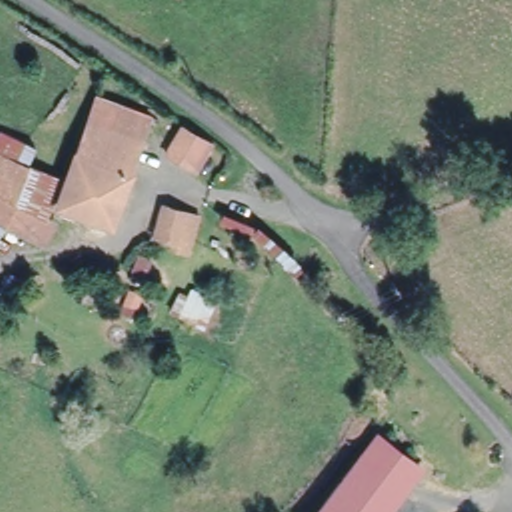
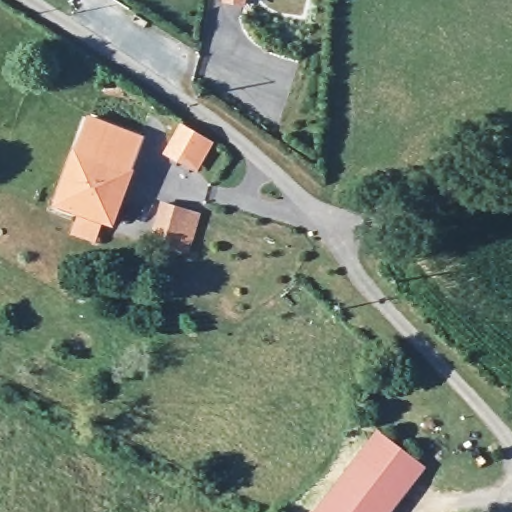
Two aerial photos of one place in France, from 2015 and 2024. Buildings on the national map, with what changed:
new [(244,3),(228,0),(245,0),(244,3)]
unchanged [(114,216),(58,198),(70,164),(89,107),(144,125),(114,216)]
demolished [(34,152),(70,164),(58,198),(50,196),(42,217),(54,222),(45,242),(3,225),(0,231),(0,125),(40,142),(34,152)]
unchanged [(190,171),(168,156),(188,125),(210,140),(190,171)]
unchanged [(200,213),(190,244),(145,231),(155,199),(200,213)]
unchanged [(313,512),(366,427),(395,446),(417,460),(384,512),(313,512)]

